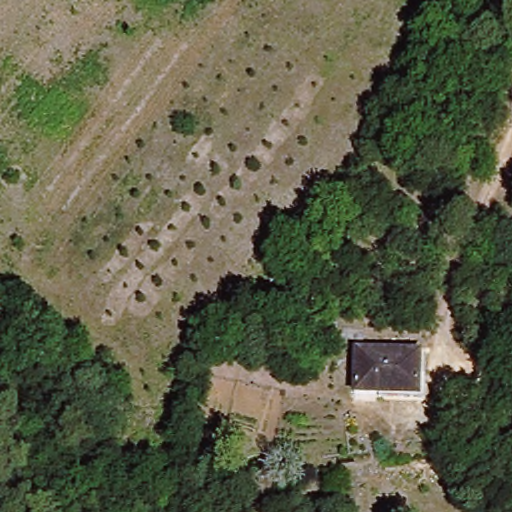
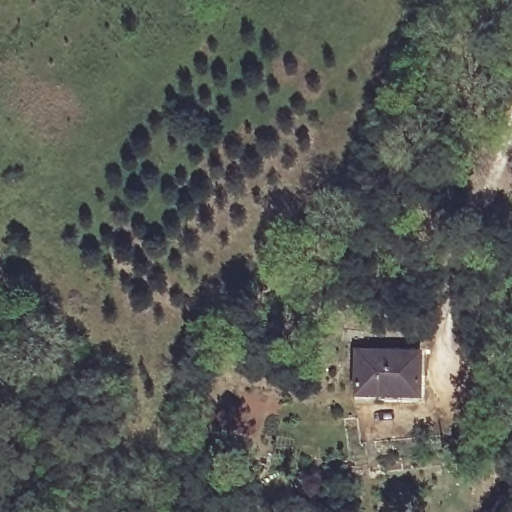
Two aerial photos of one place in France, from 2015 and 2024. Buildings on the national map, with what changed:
unchanged [(422,351),(420,391),(357,388),(358,348),(422,351)]

